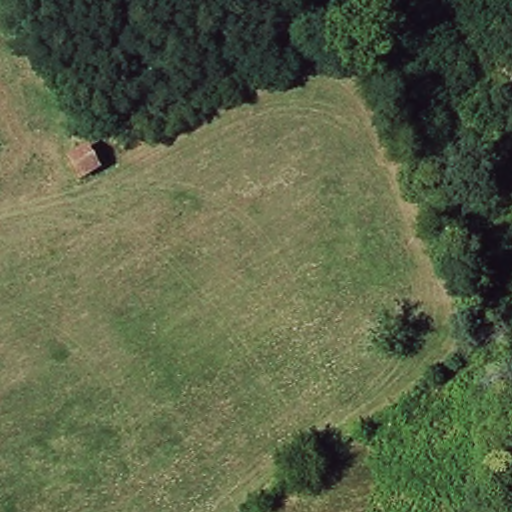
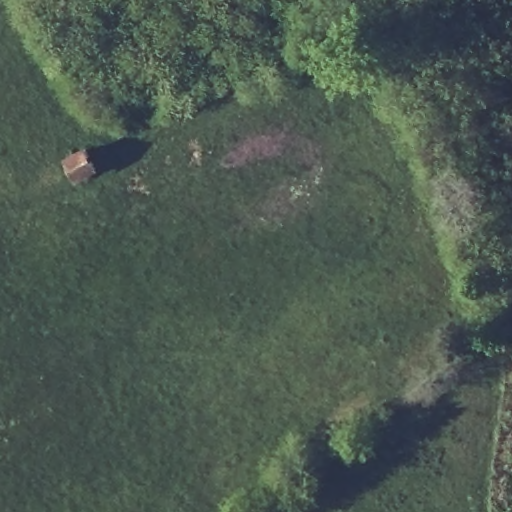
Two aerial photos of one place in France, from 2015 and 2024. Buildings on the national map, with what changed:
unchanged [(98,169),(82,180),(72,161),(89,151),(98,169)]

